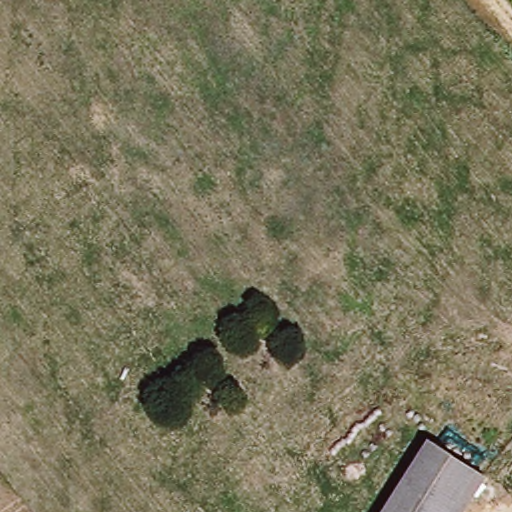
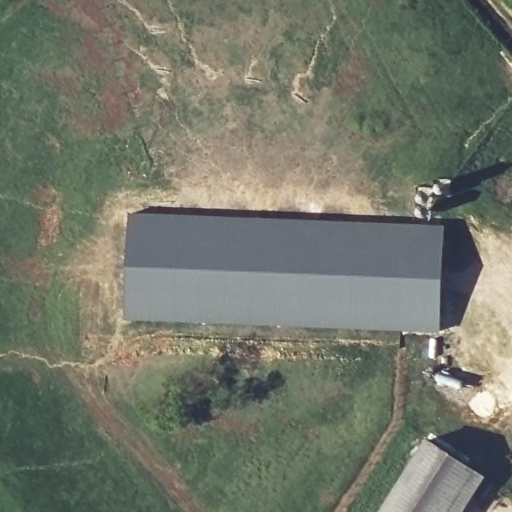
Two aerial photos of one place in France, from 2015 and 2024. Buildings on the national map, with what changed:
new [(125,318),(131,213),(444,226),(439,331),(125,318)]
unchanged [(487,483),(467,512),(385,512),(429,446),(487,483)]

